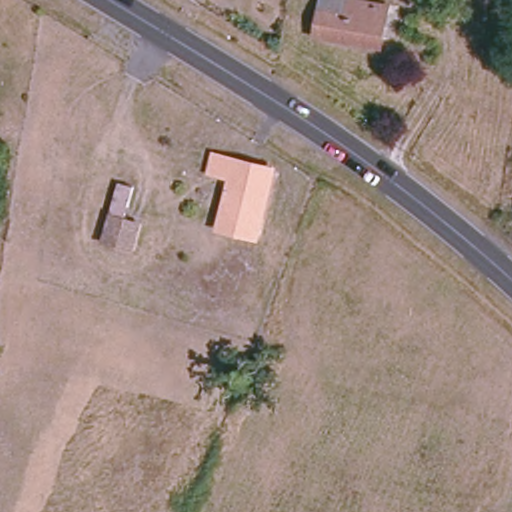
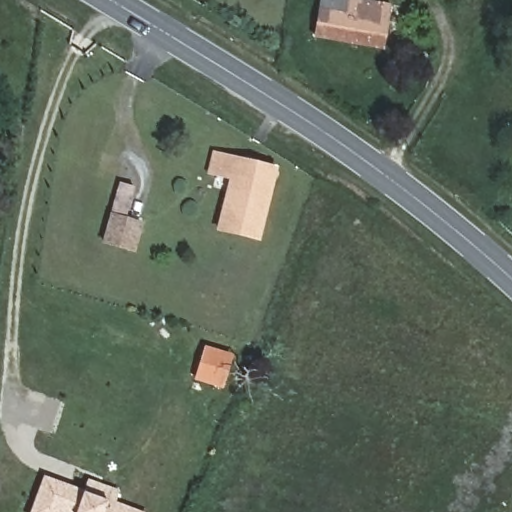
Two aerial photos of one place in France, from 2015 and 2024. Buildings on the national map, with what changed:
unchanged [(395,2),(389,45),(322,33),(328,0),(381,0),(395,2)]
unchanged [(276,166),(260,232),(221,223),(233,172),(213,167),(218,151),(276,166)]
unchanged [(123,182),(135,184),(127,214),(144,219),(137,246),(106,238),(123,182)]
new [(194,379),(203,346),(231,354),(222,387),(194,379)]
new [(83,492),(107,500),(140,512),(30,512),(43,476),(83,492)]

